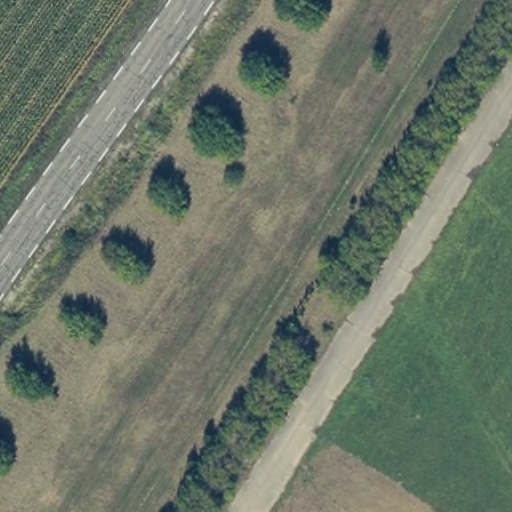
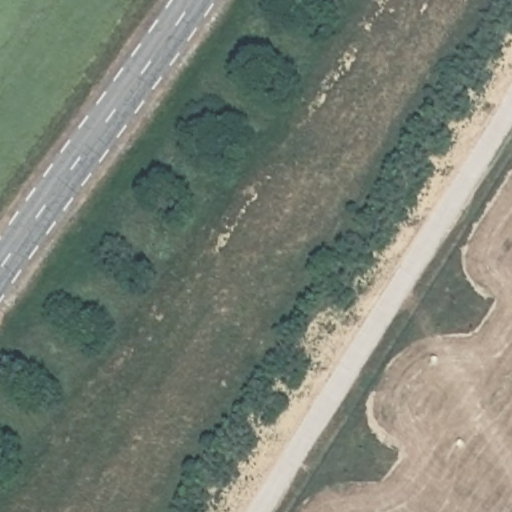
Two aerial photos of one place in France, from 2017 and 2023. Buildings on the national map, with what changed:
[]

